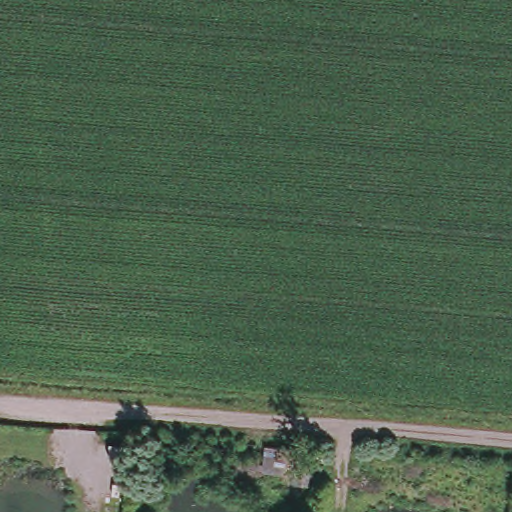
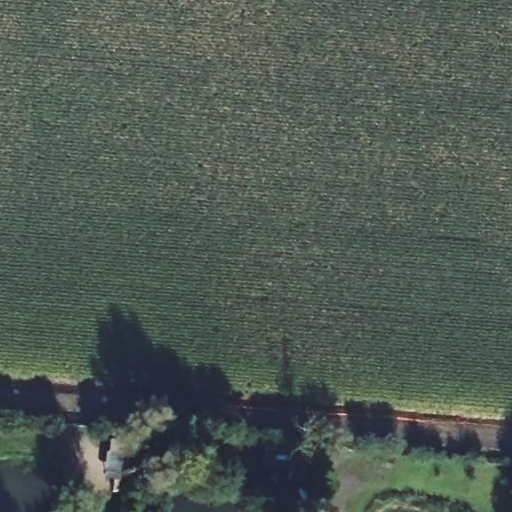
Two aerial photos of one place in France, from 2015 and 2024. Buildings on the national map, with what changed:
unchanged [(322,489),(292,483),(297,458),(327,463),(322,489)]

